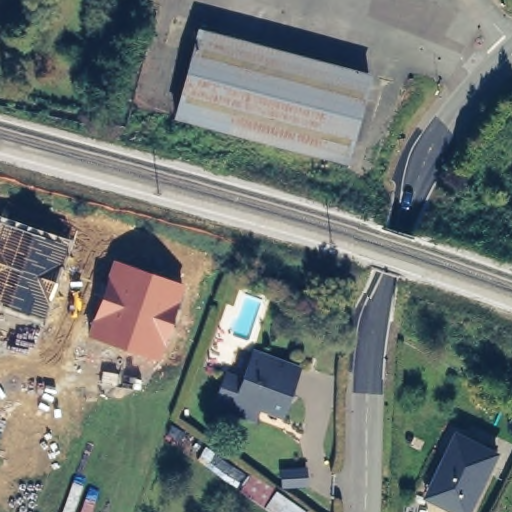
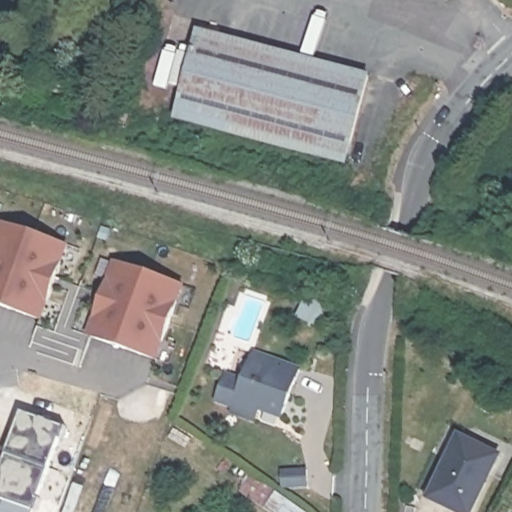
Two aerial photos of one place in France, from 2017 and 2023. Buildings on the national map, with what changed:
unchanged [(347,166),(180,121),(202,35),(368,80),(347,166)]
unchanged [(0,307),(0,217),(71,240),(43,323),(0,307)]
unchanged [(184,284),(158,360),(88,335),(113,260),(184,284)]
unchanged [(303,370),(295,385),(292,384),(289,394),(292,396),(283,417),(262,410),(257,421),(233,411),(235,407),(220,401),(231,375),(244,380),(255,353),(303,370)]
new [(0,474),(0,473),(15,430),(20,432),(27,411),(73,428),(69,440),(67,439),(45,499),(47,500),(42,512),(41,512),(0,497),(0,488),(5,475),(0,474)]
unchanged [(484,481),(485,482),(473,512),(463,512),(434,499),(445,473),(443,472),(458,437),(496,455),(484,481)]

